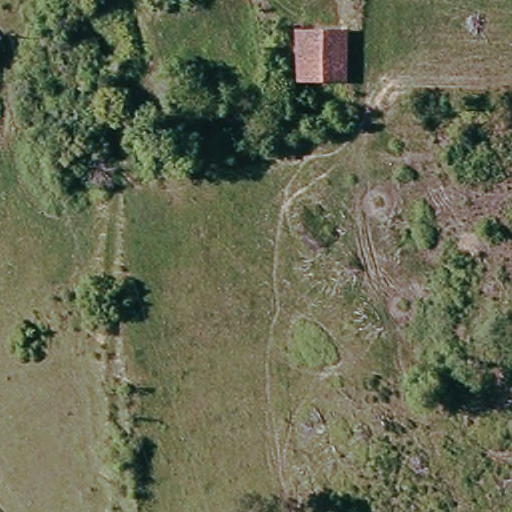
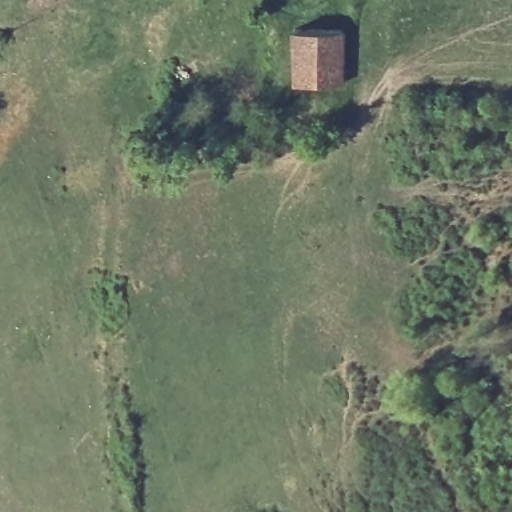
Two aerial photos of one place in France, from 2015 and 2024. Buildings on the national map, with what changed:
unchanged [(297,77),(299,27),(349,29),(347,79),(297,77)]

